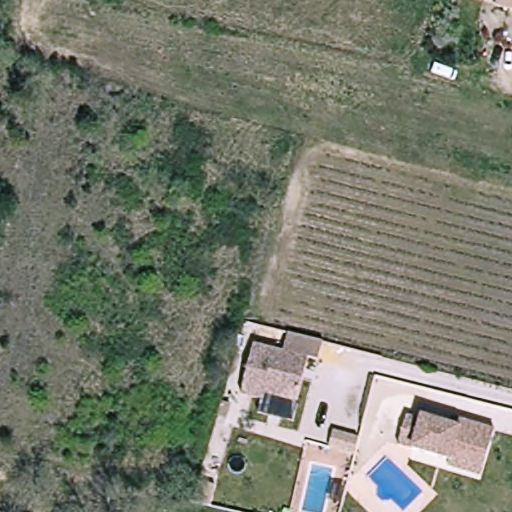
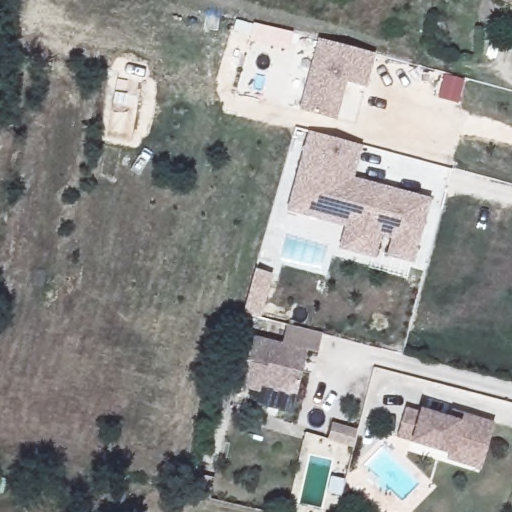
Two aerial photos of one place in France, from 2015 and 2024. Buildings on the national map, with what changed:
unchanged [(501,1),(501,0),(512,0),(512,4),(501,1)]
new [(365,87),(345,82),(335,119),(304,111),(306,103),(302,102),(319,39),(373,54),(365,87)]
new [(363,145),(355,177),(432,198),(414,263),(386,256),(391,239),(382,236),(376,259),(339,248),(345,226),(286,210),(309,131),(363,145)]
unchanged [(327,337),(322,357),(312,354),(301,398),(266,389),(264,396),(244,391),(257,340),(287,348),(292,328),(327,337)]
unchanged [(455,462),(457,457),(404,441),(412,412),(427,416),(428,413),(456,421),(458,414),(468,416),(501,427),(492,457),(487,472),(455,462)]
unchanged [(336,426),(361,433),(356,450),(331,443),(336,426)]

